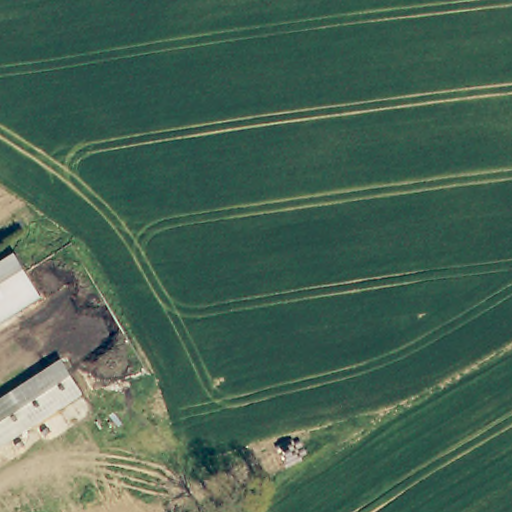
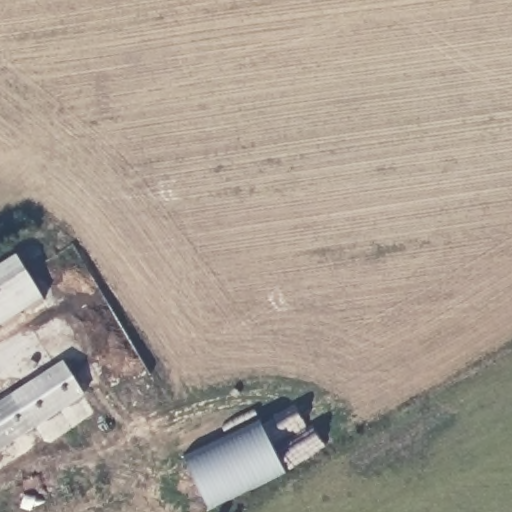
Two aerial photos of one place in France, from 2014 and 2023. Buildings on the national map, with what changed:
unchanged [(16,257),(44,299),(37,303),(0,326),(0,267),(16,257)]
unchanged [(64,361),(86,394),(37,425),(15,392),(64,361)]
unchanged [(15,392),(37,425),(0,448),(0,401),(15,392)]
new [(285,476),(208,510),(182,454),(258,420),(285,476)]

